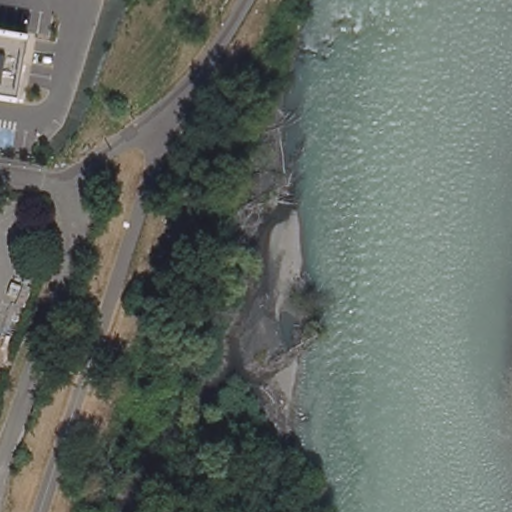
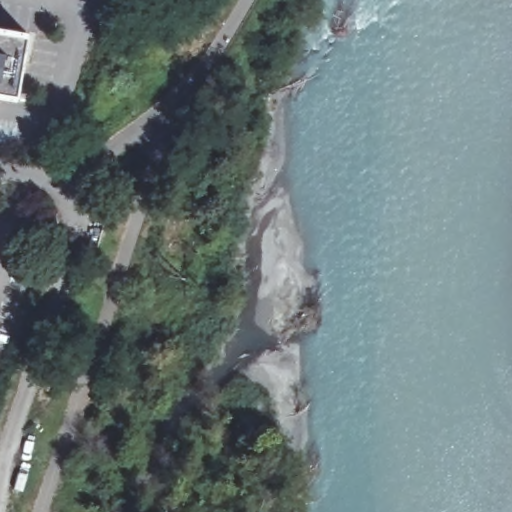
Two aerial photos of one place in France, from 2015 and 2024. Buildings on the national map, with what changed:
unchanged [(27,37),(17,99),(0,95),(0,31),(27,37)]

